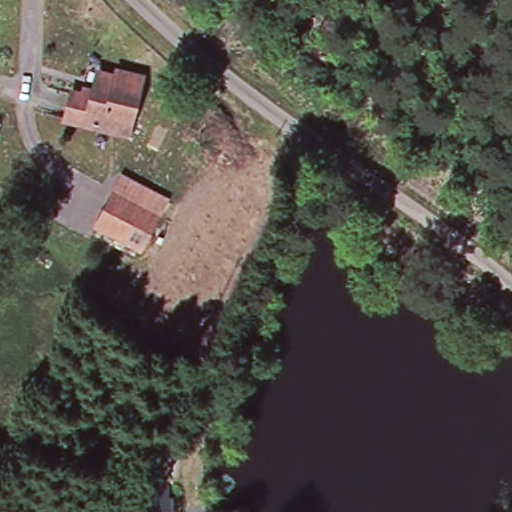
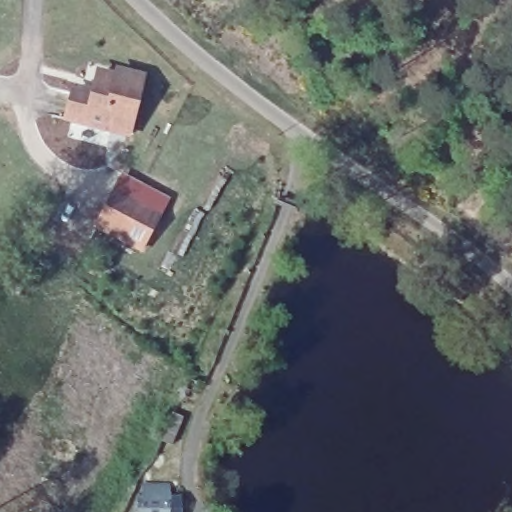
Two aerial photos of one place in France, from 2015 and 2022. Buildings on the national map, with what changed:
unchanged [(96,106),(103,81),(120,86),(122,80),(145,85),(130,139),(73,123),(80,102),(96,106)]
unchanged [(100,222),(118,187),(125,174),(143,182),(170,196),(163,209),(144,244),(117,231),(100,222)]
unchanged [(100,207),(87,230),(77,225),(89,201),(100,207)]
unchanged [(144,493),(145,477),(170,477),(170,491),(174,491),(174,507),(170,507),(170,512),(139,512),(141,493),(144,493)]

